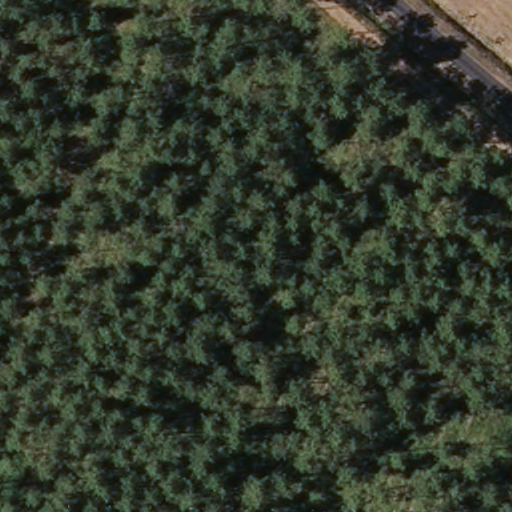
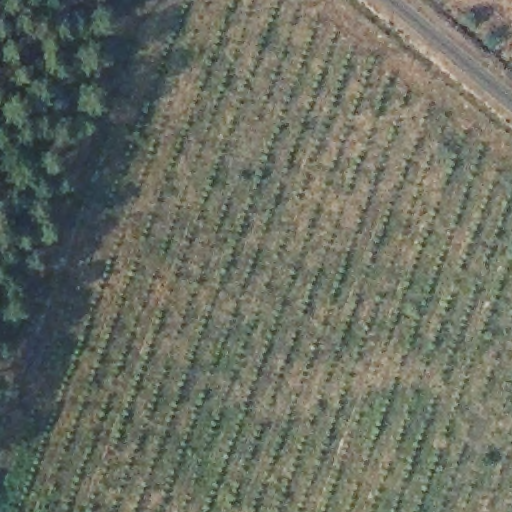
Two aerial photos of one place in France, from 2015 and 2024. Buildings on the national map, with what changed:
[]

